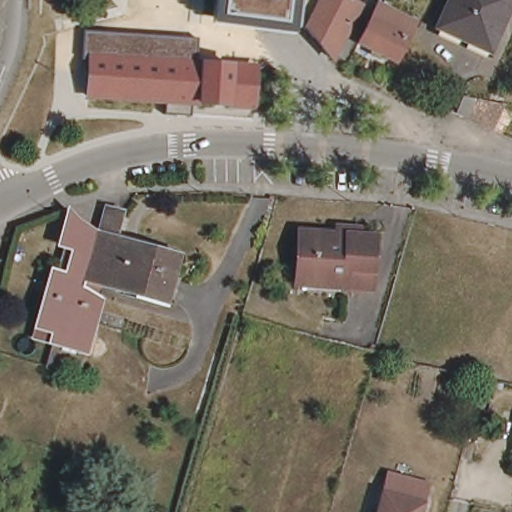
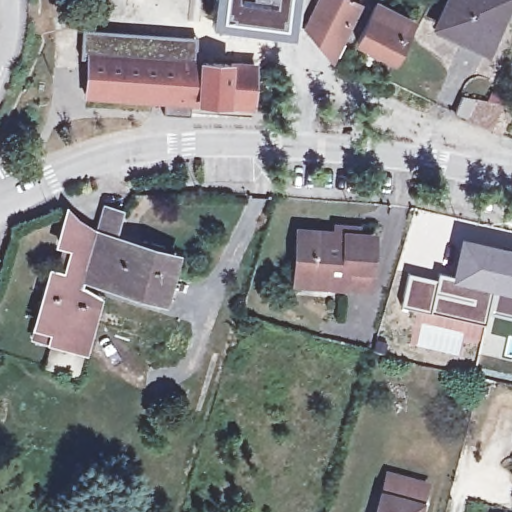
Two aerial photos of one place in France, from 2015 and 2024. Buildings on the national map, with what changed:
unchanged [(211,23),(214,0),(297,0),(292,34),(211,23)]
unchanged [(325,58),(300,26),(314,0),(349,0),(353,2),(325,58)]
unchanged [(349,0),(354,0),(353,2),(349,0)]
unchanged [(437,25),(449,0),(509,0),(486,48),(437,25)]
unchanged [(392,59),(357,41),(375,5),(375,4),(412,23),(392,59)]
unchanged [(96,56),(92,91),(67,89),(71,43),(209,53),(208,63),(96,56)]
unchanged [(96,56),(208,63),(262,66),(261,68),(257,106),(230,105),(97,97),(92,97),(92,91),(96,56)]
unchanged [(490,128),(454,111),(462,94),(486,99),(502,103),(490,128)]
unchanged [(107,201),(125,206),(117,234),(179,252),(167,293),(97,273),(89,270),(98,236),(107,201)]
unchanged [(89,270),(85,281),(106,291),(82,372),(49,361),(56,337),(38,331),(55,270),(59,271),(69,240),(65,238),(73,207),(92,228),(91,234),(98,236),(89,270)]
unchanged [(367,286),(345,284),(345,276),(297,273),(300,230),(335,232),(336,224),(350,225),(349,233),(372,234),(367,286)]
new [(487,312),(485,324),(401,306),(407,271),(437,277),(438,271),(452,274),(460,235),(510,246),(512,246),(512,317),(487,312)]
unchanged [(387,475),(426,485),(419,512),(378,512),(387,475)]

